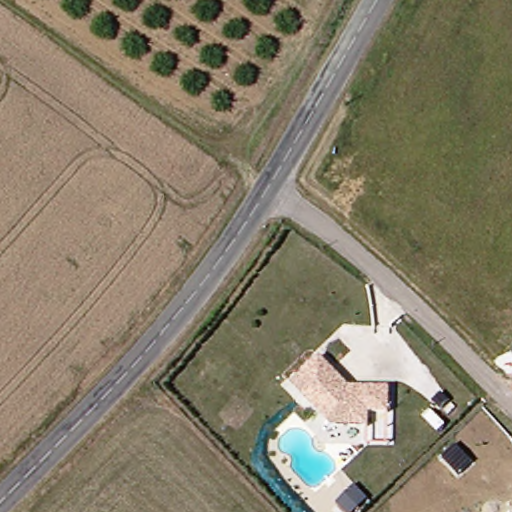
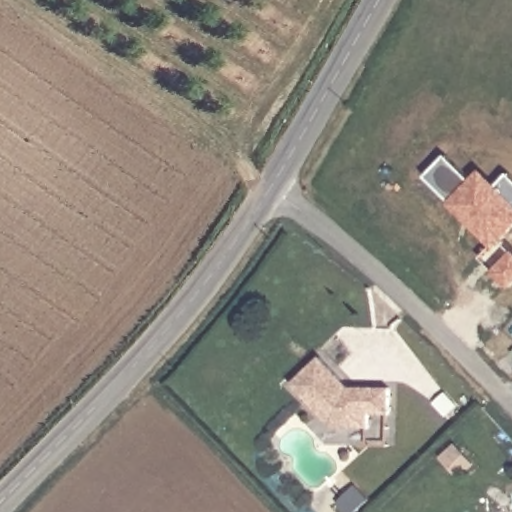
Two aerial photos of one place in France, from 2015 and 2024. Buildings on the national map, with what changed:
new [(506,239),(512,244),(512,284),(484,257),(495,246),(430,178),(451,156),(474,180),(486,168),(501,184),(512,174),(512,233),(506,239)]
unchanged [(390,410),(370,409),(370,423),(333,423),(293,379),(321,353),(342,376),(350,384),(390,385),(390,410)]

